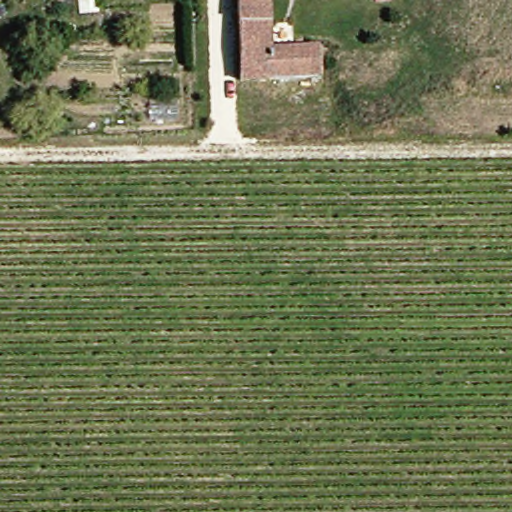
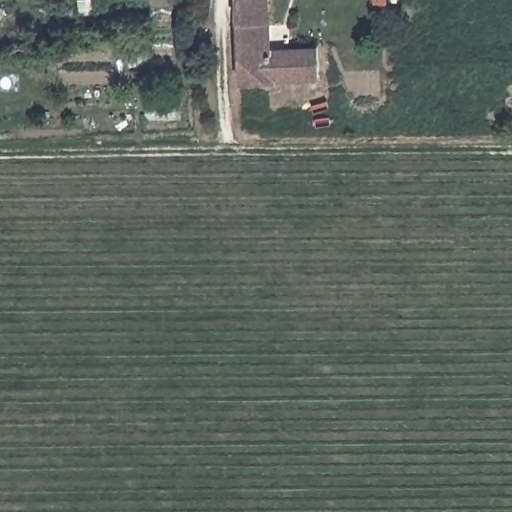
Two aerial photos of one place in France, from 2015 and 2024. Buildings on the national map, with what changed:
unchanged [(252,75),(248,0),(279,0),(282,49),(283,74),(252,75)]
unchanged [(330,72),(283,74),(282,49),(329,47),(330,72)]
unchanged [(0,97),(0,82),(1,97),(0,97)]

